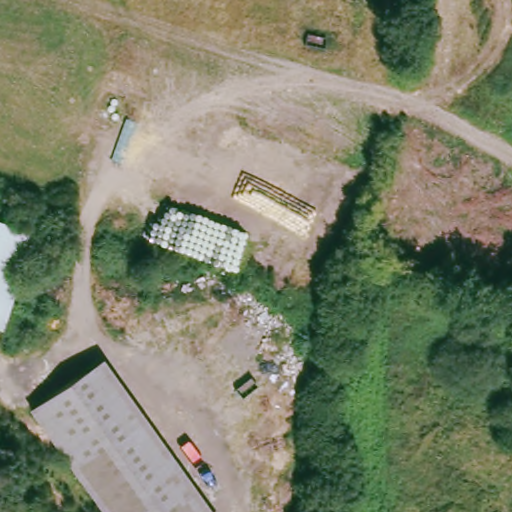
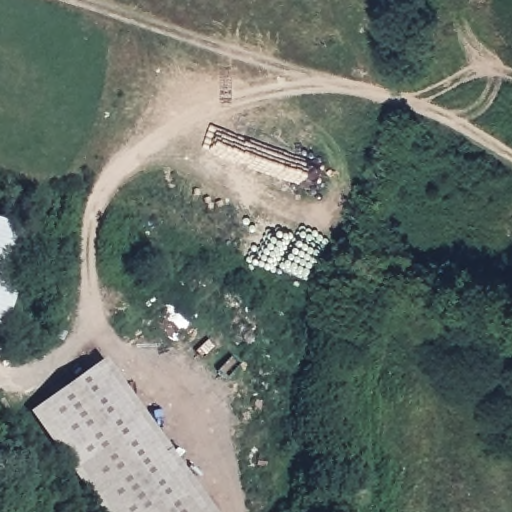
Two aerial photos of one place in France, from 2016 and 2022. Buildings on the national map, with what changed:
unchanged [(0,329),(0,222),(37,237),(0,329)]
unchanged [(119,512),(45,402),(102,363),(204,512),(119,512)]

